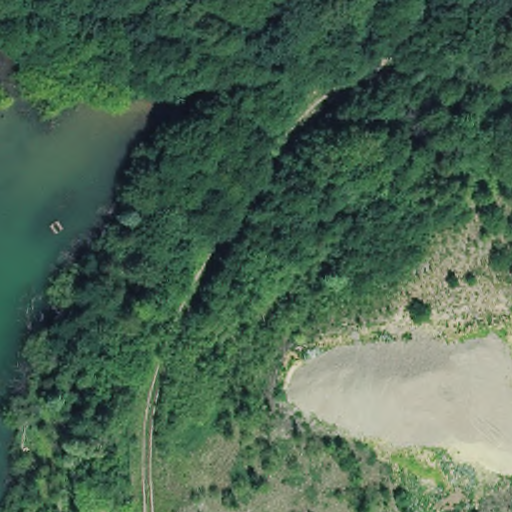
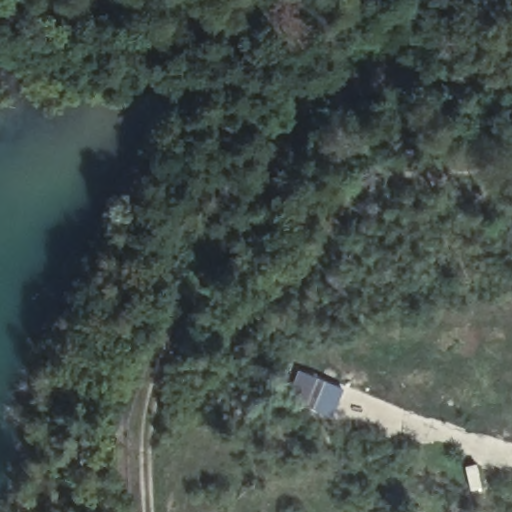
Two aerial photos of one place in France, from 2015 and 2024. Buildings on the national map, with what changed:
new [(339,389),(333,419),(291,406),(297,373),(339,389)]

